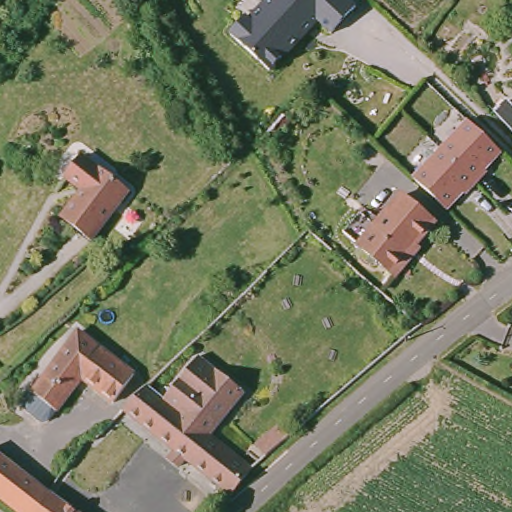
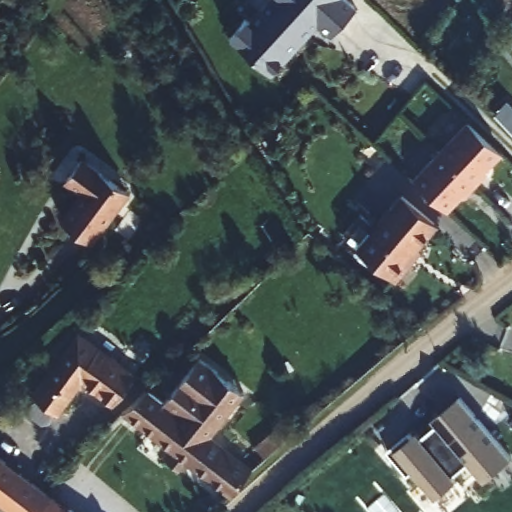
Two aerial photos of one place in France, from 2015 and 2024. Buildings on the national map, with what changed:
unchanged [(356,3),(330,32),(313,18),(270,66),(228,31),(258,0),(353,0),(356,3)]
unchanged [(512,21),(512,47),(495,29),(508,17),(512,21)]
unchanged [(502,149),(449,207),(413,177),(465,120),(502,149)]
unchanged [(131,195),(98,239),(70,218),(85,198),(67,184),(85,160),(131,195)]
unchanged [(406,260),(389,279),(353,245),(375,222),(400,196),(430,224),(410,246),(415,251),(406,260)]
unchanged [(70,335),(75,327),(117,359),(131,370),(110,397),(80,374),(53,407),(28,389),(39,376),(45,369),(70,335)]
unchanged [(215,376),(216,369),(245,391),(212,437),(250,466),(225,495),(119,414),(146,384),(163,396),(192,360),(215,376)]
new [(478,475),(466,463),(462,458),(446,472),(449,475),(429,493),(406,467),(401,471),(380,447),(402,428),(406,432),(410,429),(418,438),(434,425),(426,416),(429,413),(452,392),(493,439),(505,452),(478,475)]
unchanged [(249,443),(270,426),(271,425),(281,436),(258,454),(249,443)]
unchanged [(33,512),(25,512),(0,493),(0,451),(45,487),(49,489),(33,512)]
unchanged [(83,512),(33,512),(49,489),(83,512)]
unchanged [(195,499),(202,510),(199,512),(186,512),(183,509),(195,499)]

